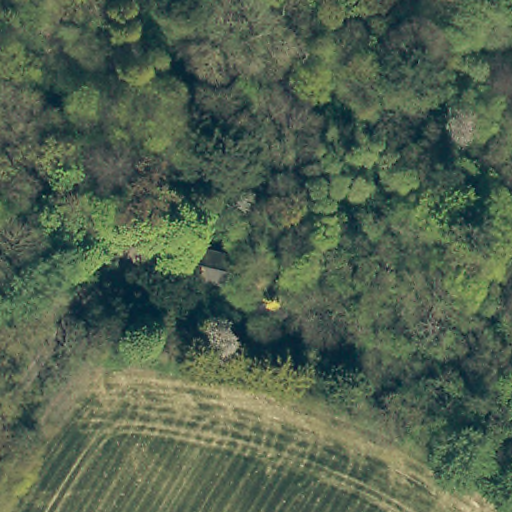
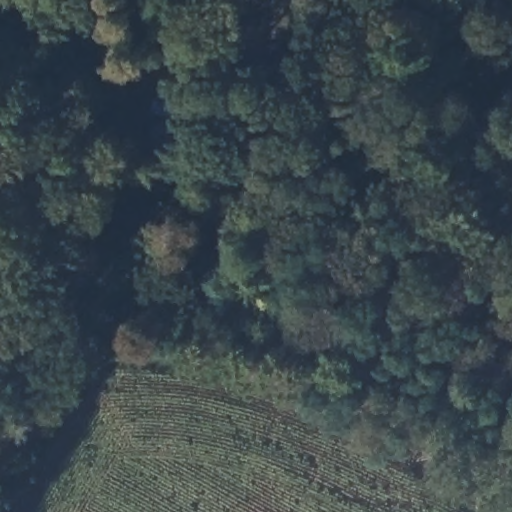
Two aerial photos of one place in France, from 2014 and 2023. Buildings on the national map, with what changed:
unchanged [(224,290),(189,273),(204,248),(242,257),(224,290)]

